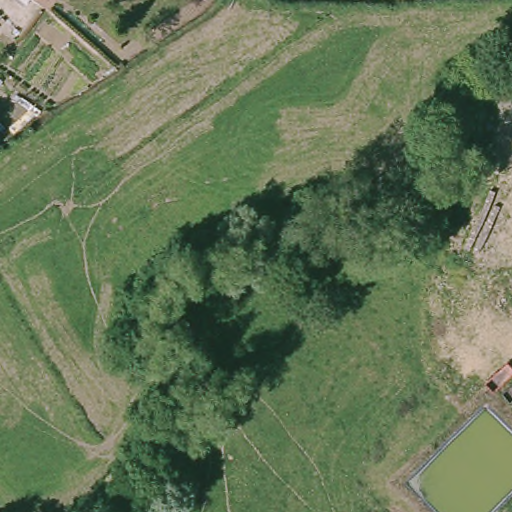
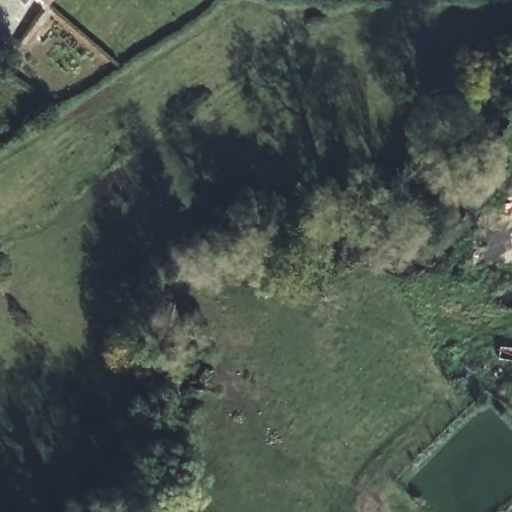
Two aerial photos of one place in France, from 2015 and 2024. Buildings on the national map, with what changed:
unchanged [(42,0),(47,0),(45,3),(42,0)]

